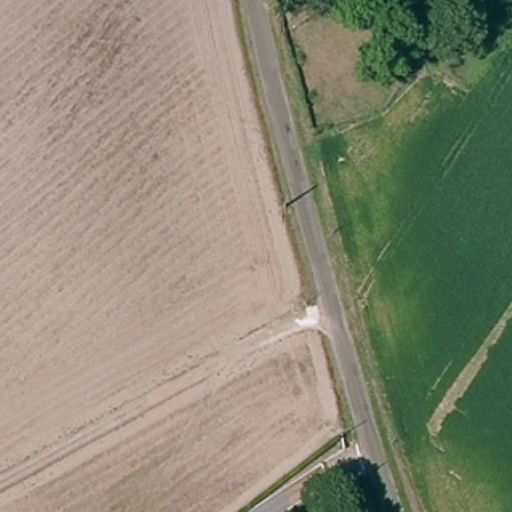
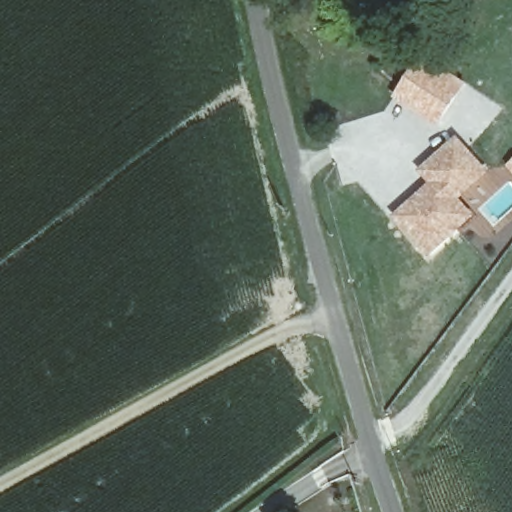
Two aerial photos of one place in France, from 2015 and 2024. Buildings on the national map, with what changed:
new [(392,98),(423,56),(466,82),(437,128),(392,98)]
new [(490,171),(459,199),(473,215),(429,255),(391,214),(428,183),(417,170),(457,135),(490,171)]

